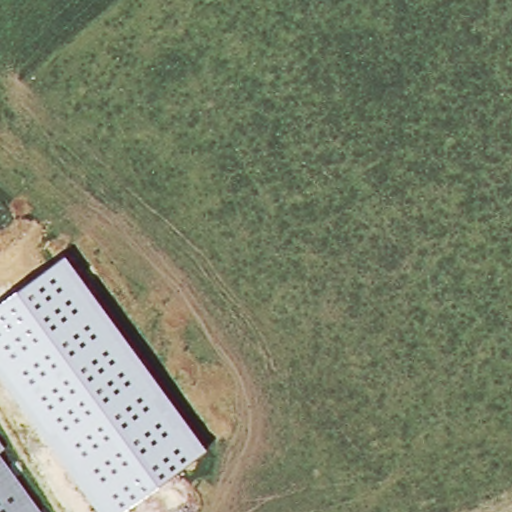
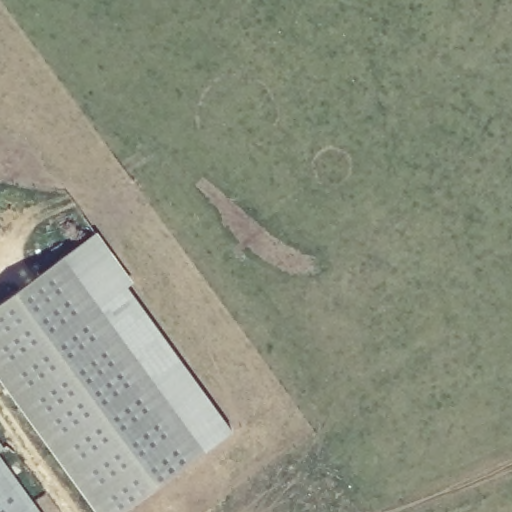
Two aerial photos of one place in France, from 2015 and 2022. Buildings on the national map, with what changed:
new [(64,257),(99,233),(135,281),(129,285),(234,430),(205,450),(64,257)]
unchanged [(117,512),(100,512),(0,375),(0,304),(64,257),(205,450),(117,512)]
unchanged [(0,451),(0,436),(7,445),(0,451)]
unchanged [(0,512),(0,455),(43,512),(0,512)]

